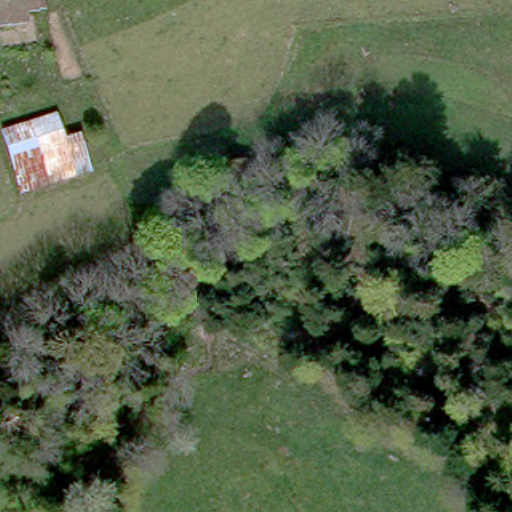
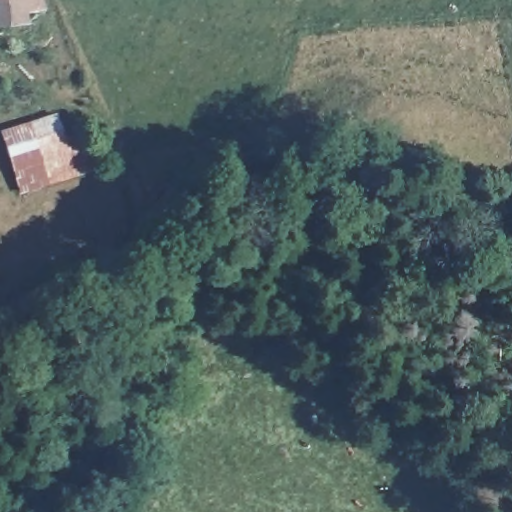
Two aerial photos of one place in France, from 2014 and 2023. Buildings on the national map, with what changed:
unchanged [(0,33),(0,0),(25,0),(27,33),(0,33)]
unchanged [(55,116),(62,138),(81,136),(95,176),(20,195),(0,131),(55,116)]

